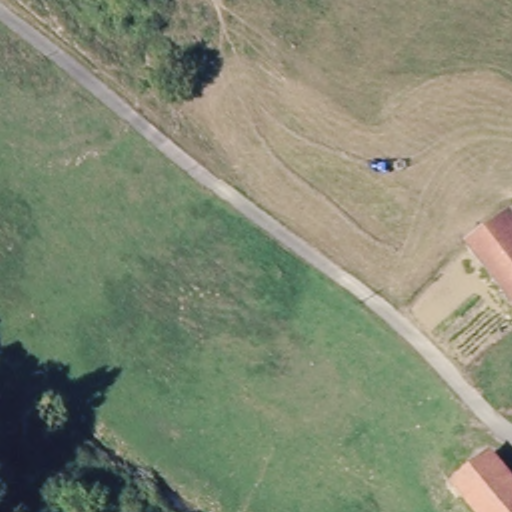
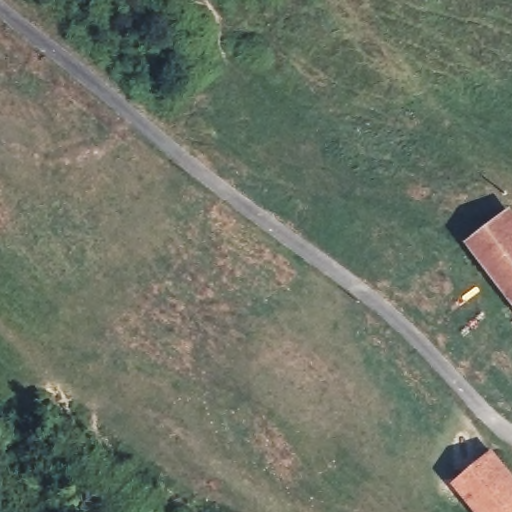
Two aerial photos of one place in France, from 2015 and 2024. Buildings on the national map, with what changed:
unchanged [(510,209),(512,212),(512,289),(473,235),(510,209)]
unchanged [(492,456),(512,482),(512,512),(477,512),(455,484),(492,456)]

